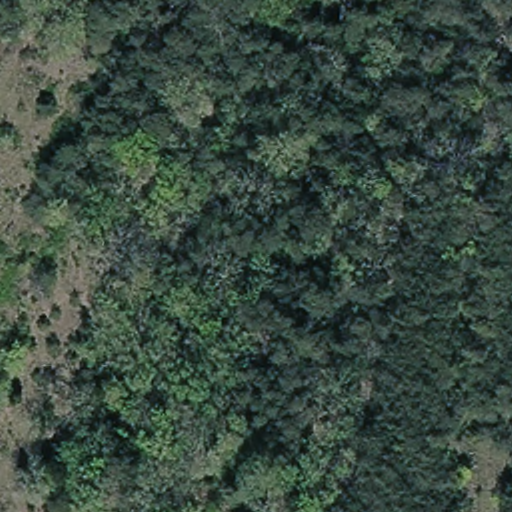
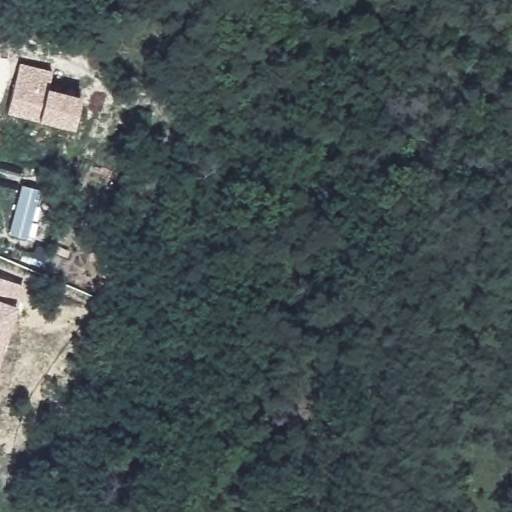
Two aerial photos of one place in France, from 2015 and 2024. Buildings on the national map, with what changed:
new [(18,65),(50,73),(46,87),(80,96),(72,130),(6,114),(18,65)]
new [(22,286),(0,356),(0,279),(22,286)]

